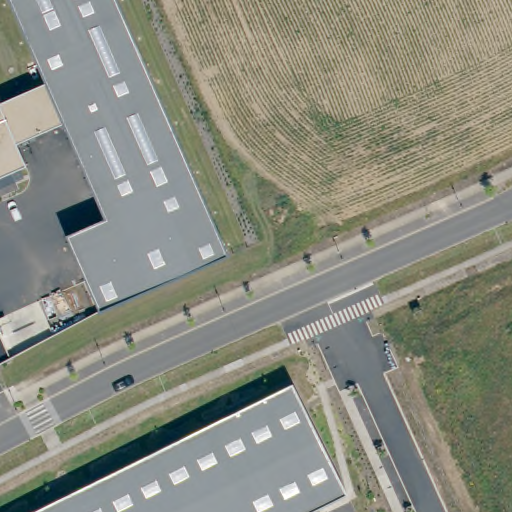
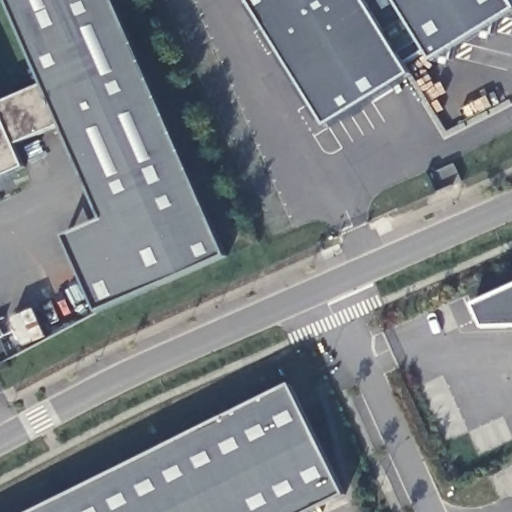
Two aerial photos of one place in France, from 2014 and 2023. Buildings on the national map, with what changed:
unchanged [(106,222),(61,125),(15,145),(24,167),(0,178),(0,102),(45,84),(9,0),(115,0),(226,258),(100,313),(67,238),(106,222)]
new [(252,0),(512,0),(512,13),(436,61),(414,74),(329,122),(252,0)]
new [(485,326),(475,305),(512,288),(512,326),(485,326)]
unchanged [(343,493),(305,512),(34,512),(290,386),(343,493)]

